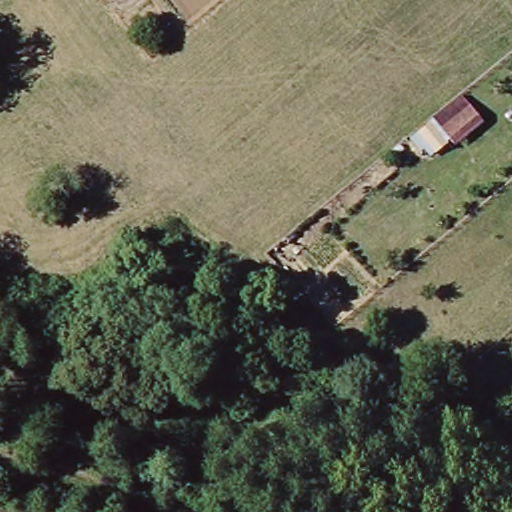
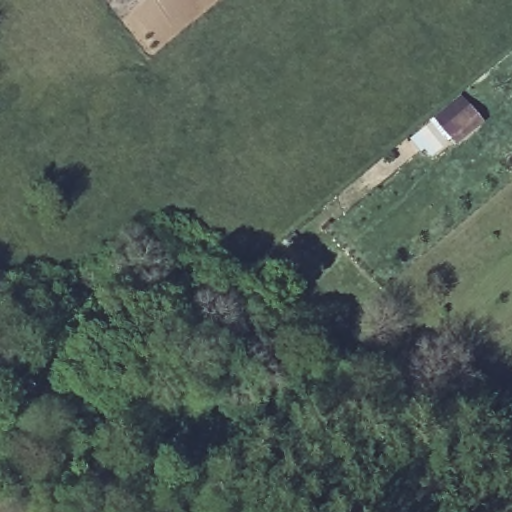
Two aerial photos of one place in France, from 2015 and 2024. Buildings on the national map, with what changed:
unchanged [(466,100),(475,110),(447,134),(439,124),(466,100)]

